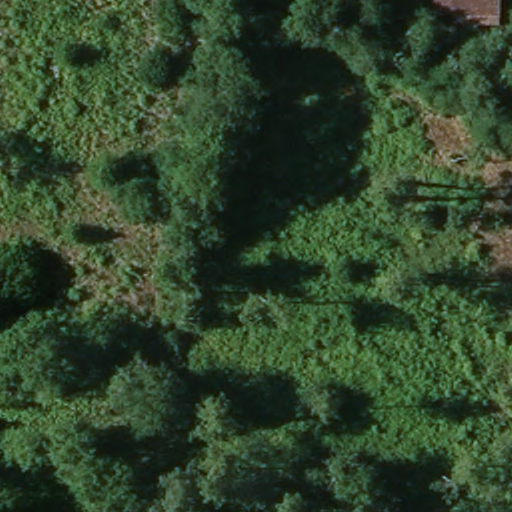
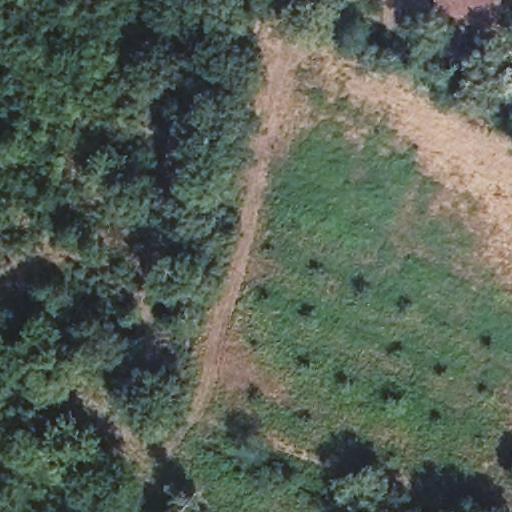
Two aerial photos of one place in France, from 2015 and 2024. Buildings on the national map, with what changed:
unchanged [(505,0),(504,10),(436,4),(437,0),(505,0)]

